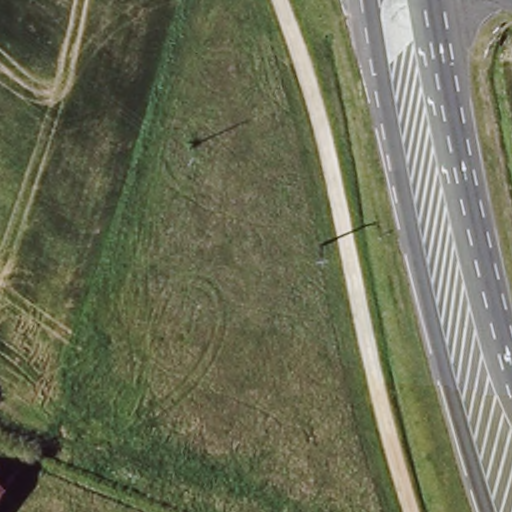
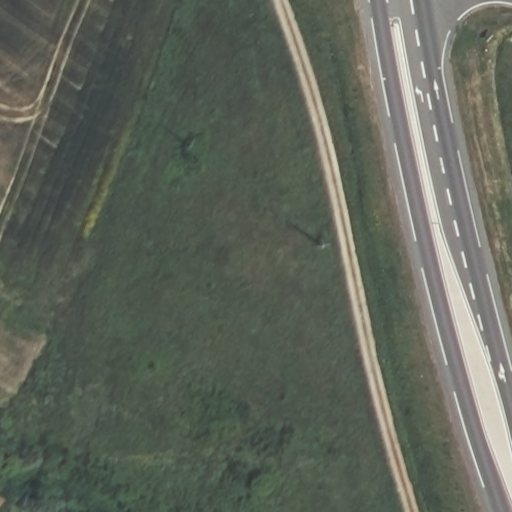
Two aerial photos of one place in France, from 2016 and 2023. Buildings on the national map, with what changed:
unchanged [(13,490),(0,508),(0,481),(13,490)]

